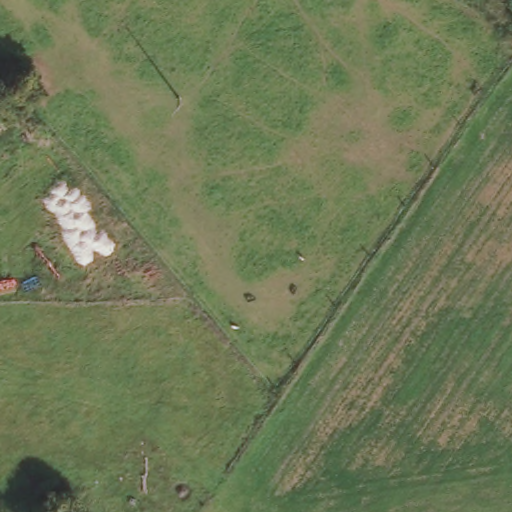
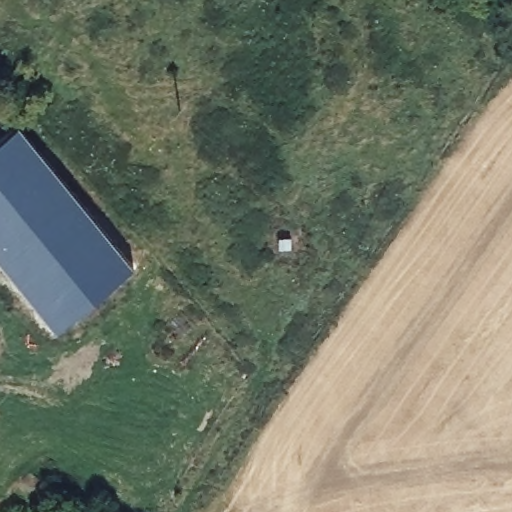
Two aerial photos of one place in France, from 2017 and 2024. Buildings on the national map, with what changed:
new [(0,261),(0,142),(19,126),(132,265),(56,329),(0,261)]

